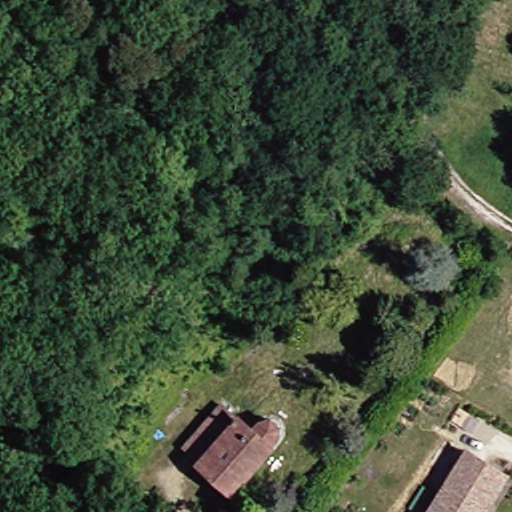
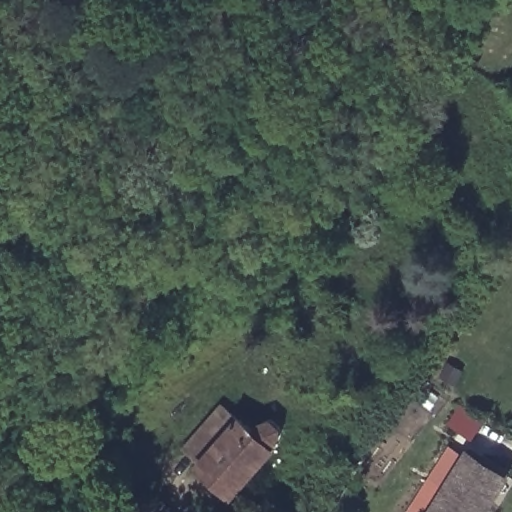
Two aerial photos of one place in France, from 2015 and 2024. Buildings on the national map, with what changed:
unchanged [(228,493),(197,465),(197,464),(180,448),(217,406),(235,421),(236,420),(249,432),(255,425),(258,422),(260,420),(262,420),(263,419),(265,419),(267,419),(268,419),(270,420),(272,421),(273,422),(275,423),(276,425),(277,427),(277,429),(277,431),(277,433),(277,435),(276,437),(273,440),(267,447),(267,448),(228,493)]
unchanged [(465,447),(489,462),(505,472),(492,492),(480,512),(423,512),(465,447)]

